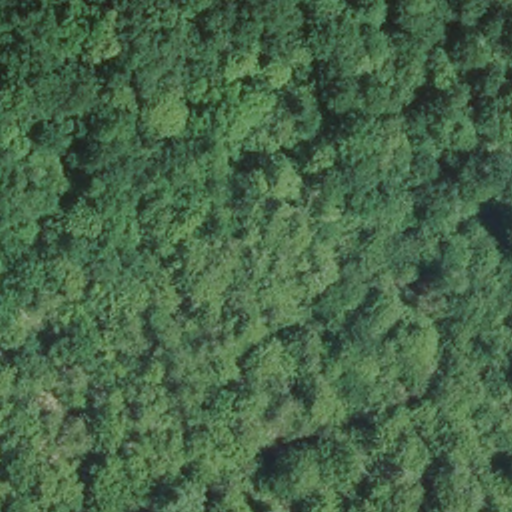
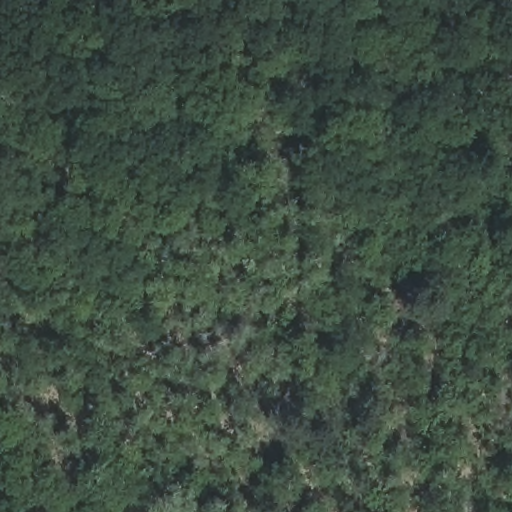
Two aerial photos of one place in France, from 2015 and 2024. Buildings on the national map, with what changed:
[]

